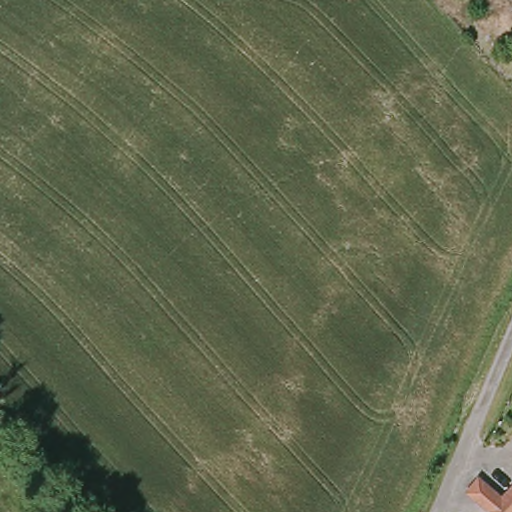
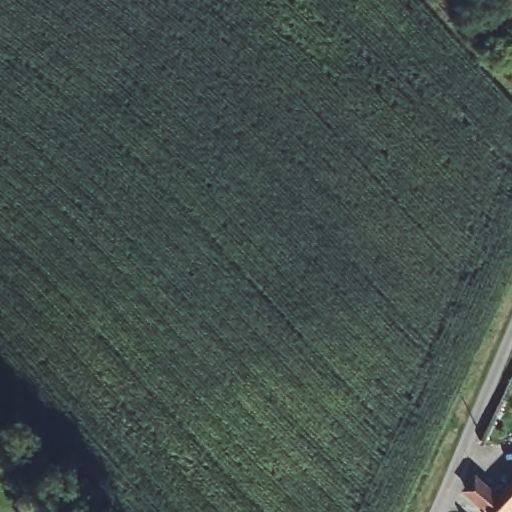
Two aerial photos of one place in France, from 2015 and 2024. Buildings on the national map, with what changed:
unchanged [(482,488),(504,507),(512,498),(512,512),(483,512),(471,500),(482,488)]

